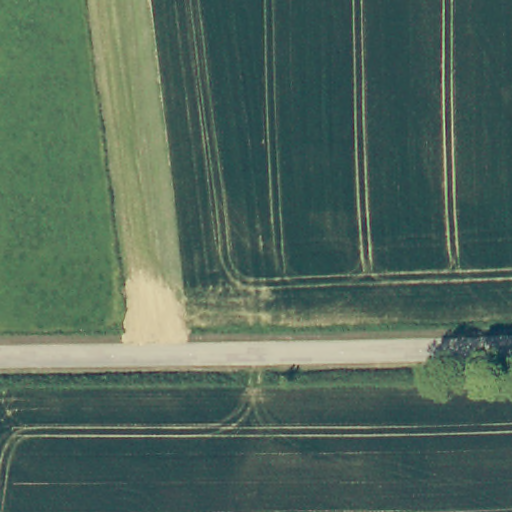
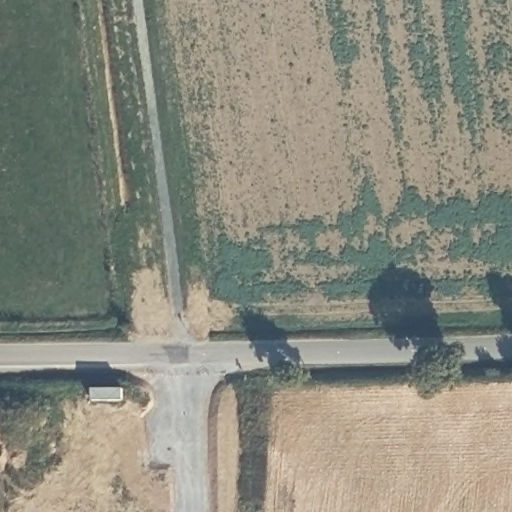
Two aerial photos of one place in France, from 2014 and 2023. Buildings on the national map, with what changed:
[]

